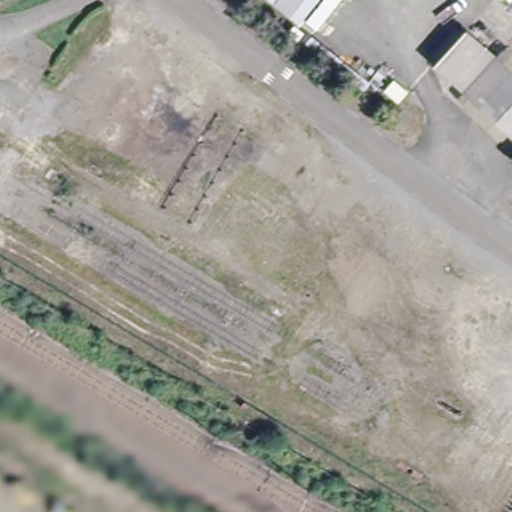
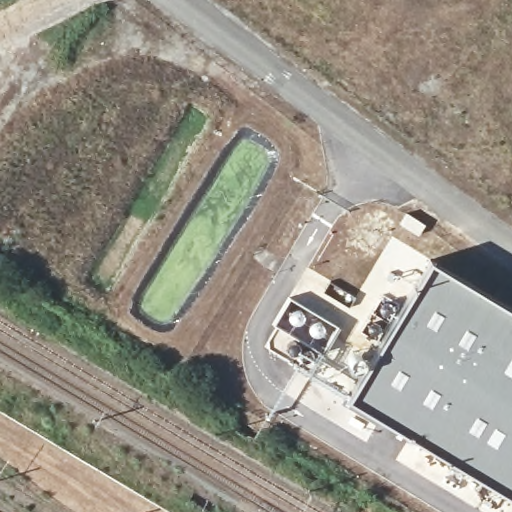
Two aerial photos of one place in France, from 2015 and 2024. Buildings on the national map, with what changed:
demolished [(59,57),(43,84),(18,67),(33,44),(59,57)]
new [(512,308),(512,499),(422,443),(347,399),(429,260),(512,308)]

